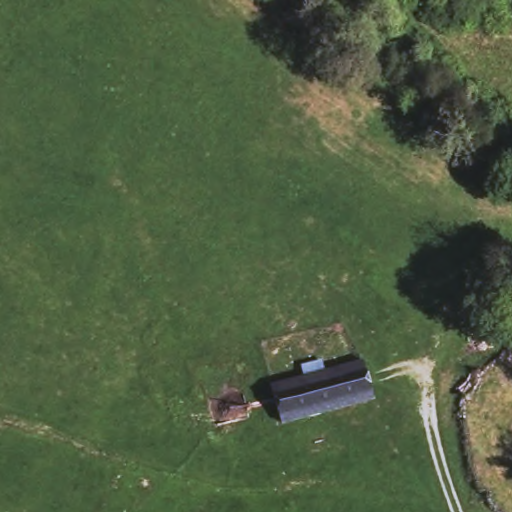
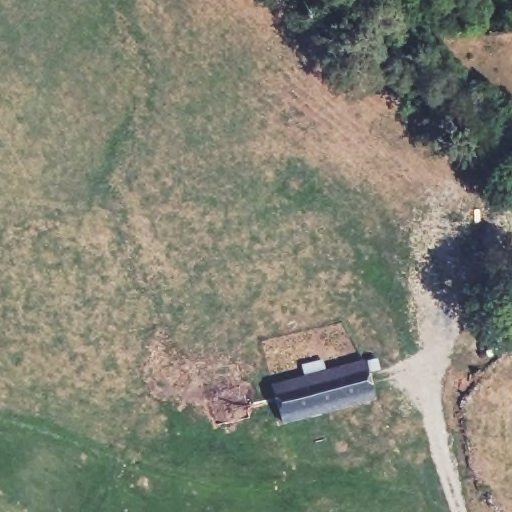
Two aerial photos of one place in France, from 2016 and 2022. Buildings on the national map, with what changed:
unchanged [(271,381),(361,357),(372,398),(328,409),(282,421),(271,381)]

